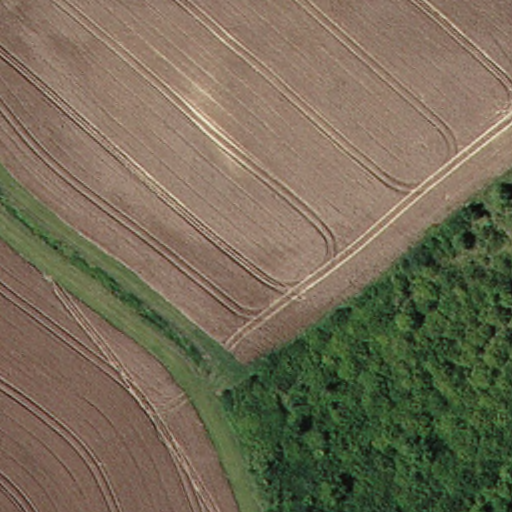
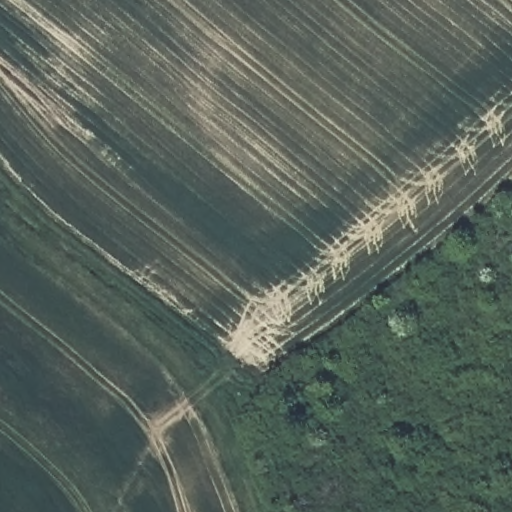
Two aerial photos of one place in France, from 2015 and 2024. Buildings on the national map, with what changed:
[]

